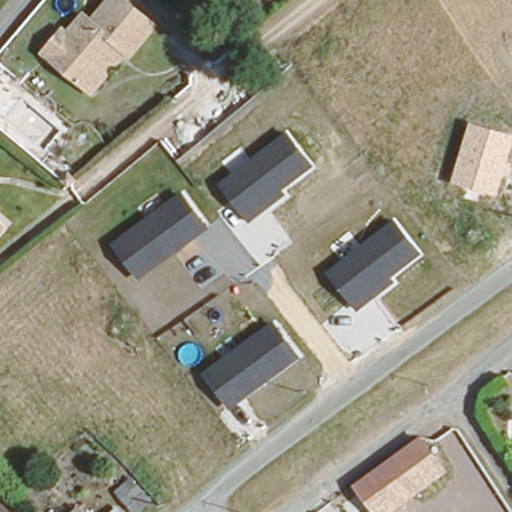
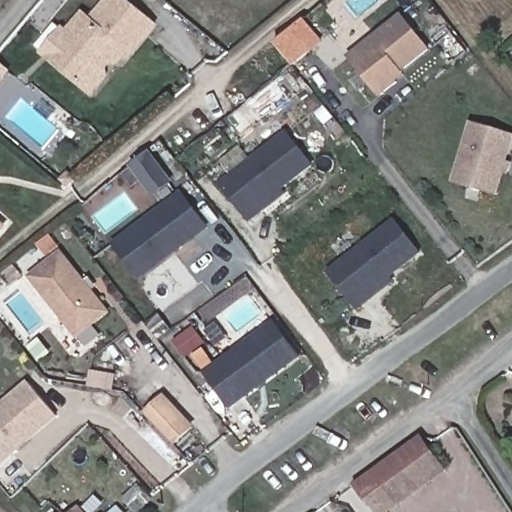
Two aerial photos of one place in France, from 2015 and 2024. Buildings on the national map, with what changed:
unchanged [(109,53),(104,59),(107,67),(89,86),(78,77),(48,49),(40,41),(62,17),(67,21),(87,2),(97,11),(108,0),(142,0),(160,15),(133,42),(121,54),(109,53)]
new [(403,73),(407,77),(380,99),(347,58),(402,15),(432,51),(403,73)]
unchanged [(0,80),(0,72),(4,76),(0,80)]
unchanged [(507,162),(512,163),(512,166),(509,176),(504,174),(498,197),(452,183),(469,122),(512,134),(512,148),(507,162)]
unchanged [(315,167),(283,190),(287,195),(249,224),(217,184),(287,130),(315,167)]
new [(129,169),(151,151),(175,183),(152,199),(129,169)]
unchanged [(210,228),(140,282),(111,243),(182,191),(210,228)]
unchanged [(422,255),(392,277),(396,283),(357,311),(326,271),(394,218),(422,255)]
unchanged [(0,224),(0,223),(1,224),(0,224)]
new [(77,341),(28,278),(64,251),(111,312),(77,341)]
unchanged [(302,358),(230,410),(203,371),(273,320),(302,358)]
new [(0,405),(29,381),(59,418),(0,466),(0,405)]
new [(176,447),(146,414),(165,395),(195,427),(176,447)]
new [(407,453),(425,440),(448,473),(393,512),(370,512),(424,474),(407,453)]
unchanged [(370,512),(369,512),(353,491),(407,453),(424,474),(370,512)]
unchanged [(84,505),(90,512),(73,512),(77,510),(84,505)]

